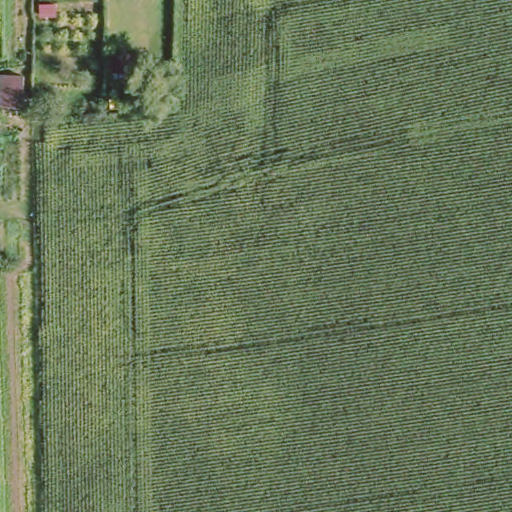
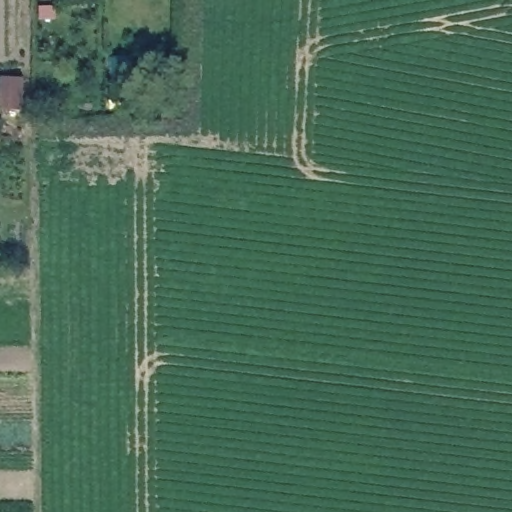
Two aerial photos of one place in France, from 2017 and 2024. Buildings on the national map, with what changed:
unchanged [(0,75),(17,74),(19,107),(0,108),(0,75)]

